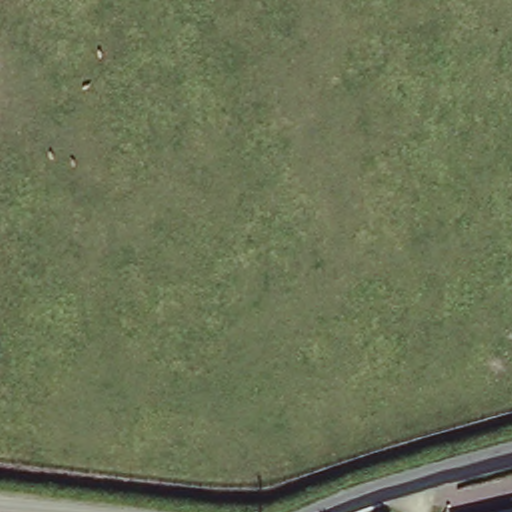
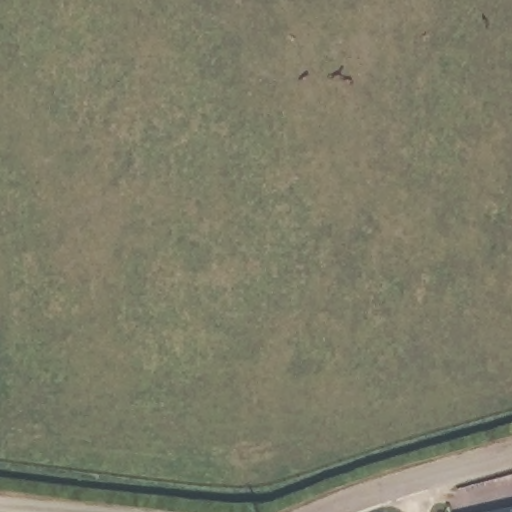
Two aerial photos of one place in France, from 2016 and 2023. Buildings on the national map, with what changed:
unchanged [(512,510),(512,512),(505,512),(512,510)]

